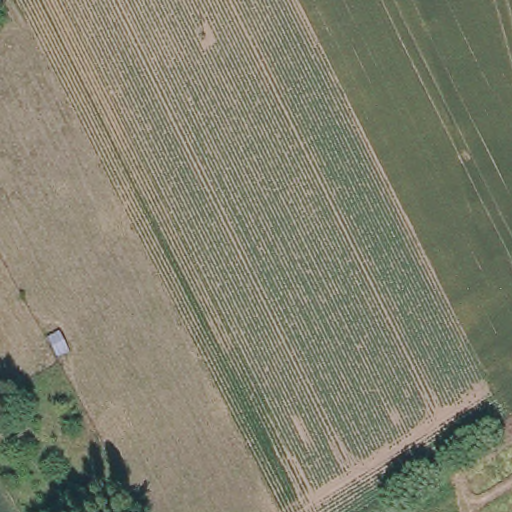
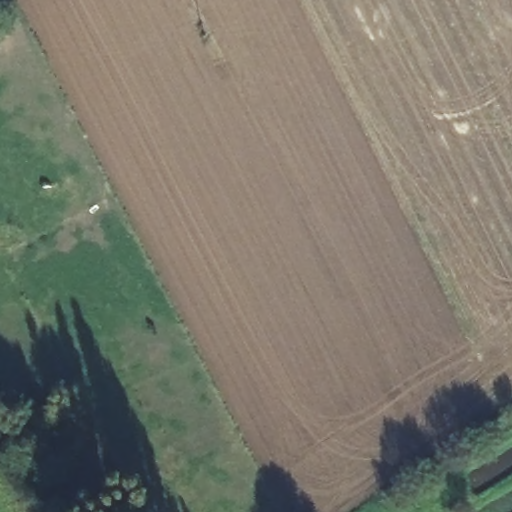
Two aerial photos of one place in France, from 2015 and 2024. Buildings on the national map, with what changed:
[]

